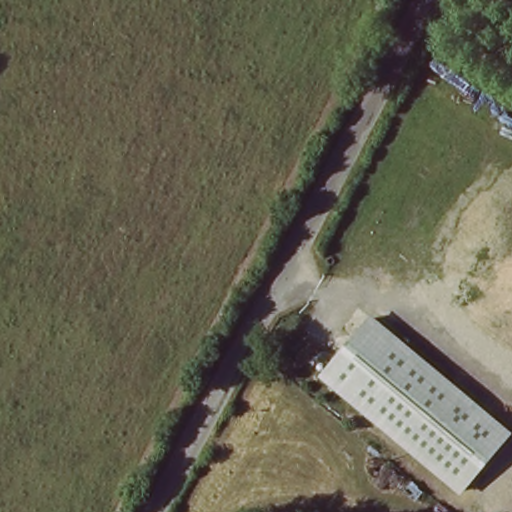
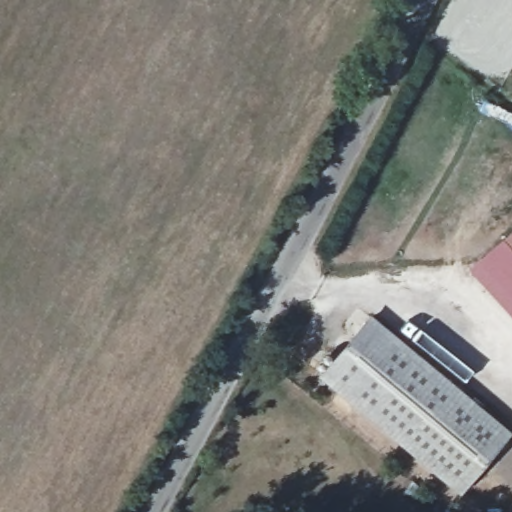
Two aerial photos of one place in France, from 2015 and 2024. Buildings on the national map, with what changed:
new [(512,314),(468,266),(512,226),(512,314)]
unchanged [(373,314),(512,436),(512,445),(466,501),(322,376),(373,314)]

